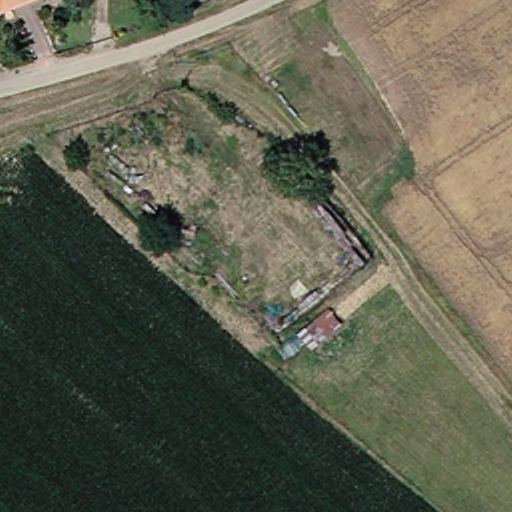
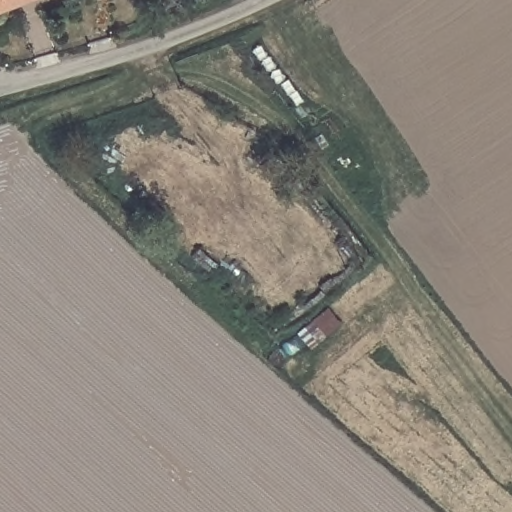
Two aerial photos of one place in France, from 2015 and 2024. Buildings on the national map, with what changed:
unchanged [(32,0),(0,11),(0,0),(32,0)]

